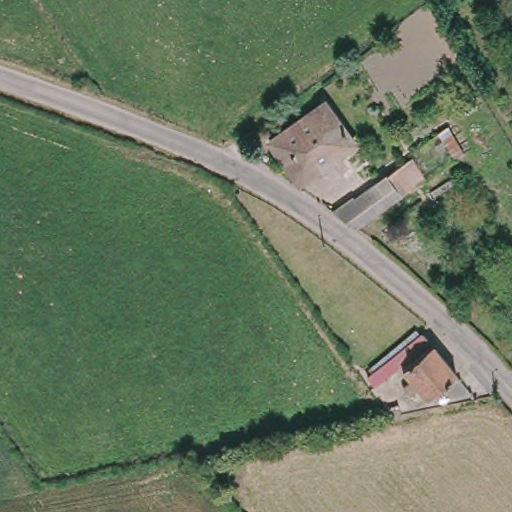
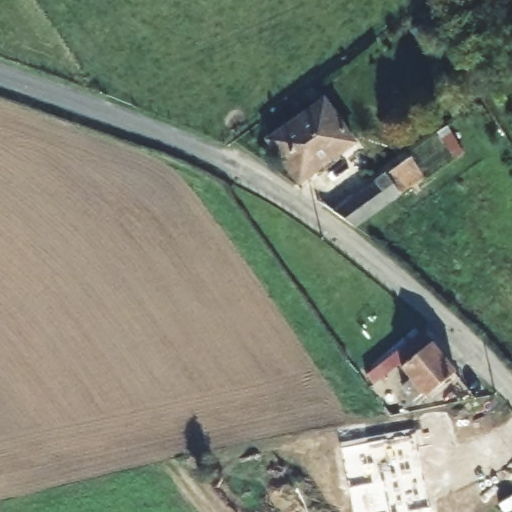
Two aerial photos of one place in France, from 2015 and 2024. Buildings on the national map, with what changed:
unchanged [(330,102),(358,146),(299,185),(270,140),(330,102)]
unchanged [(398,168),(416,193),(358,230),(333,211),(398,168)]
unchanged [(367,369),(422,334),(457,376),(430,395),(410,370),(382,389),(367,369)]
new [(400,512),(375,512),(372,483),(348,488),(342,449),(415,435),(428,506),(400,512)]

